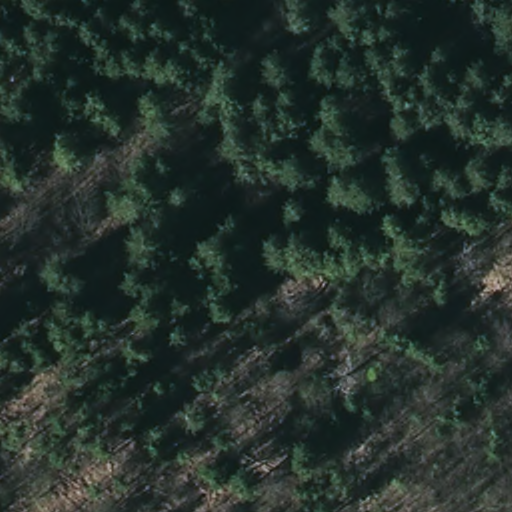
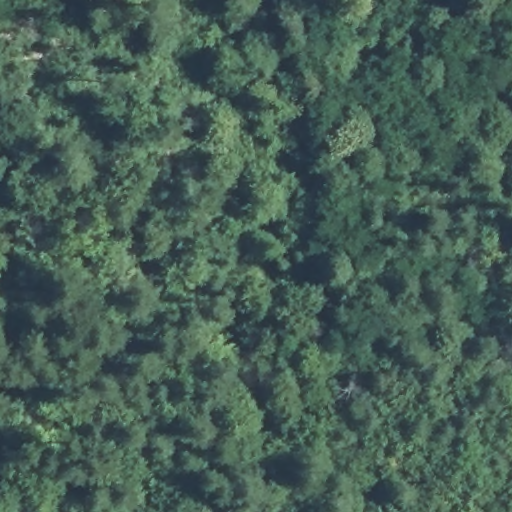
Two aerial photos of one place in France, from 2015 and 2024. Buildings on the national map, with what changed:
[]

